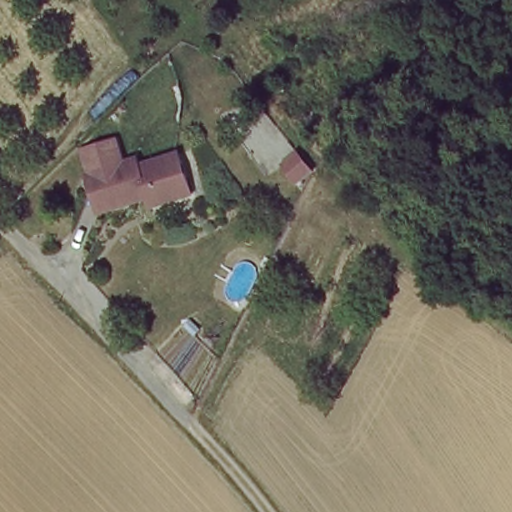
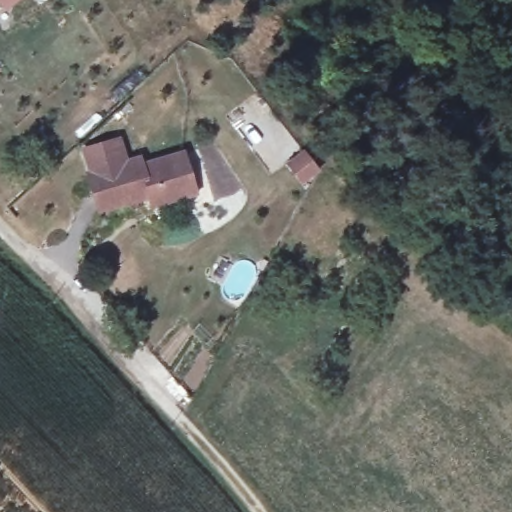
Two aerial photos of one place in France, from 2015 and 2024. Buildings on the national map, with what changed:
new [(0,0),(18,0),(3,11),(0,6),(0,0)]
unchanged [(138,162),(140,169),(181,154),(195,193),(153,208),(150,199),(100,216),(87,180),(138,162)]

